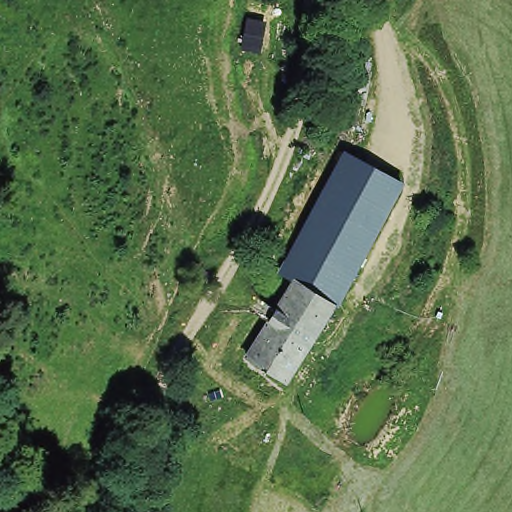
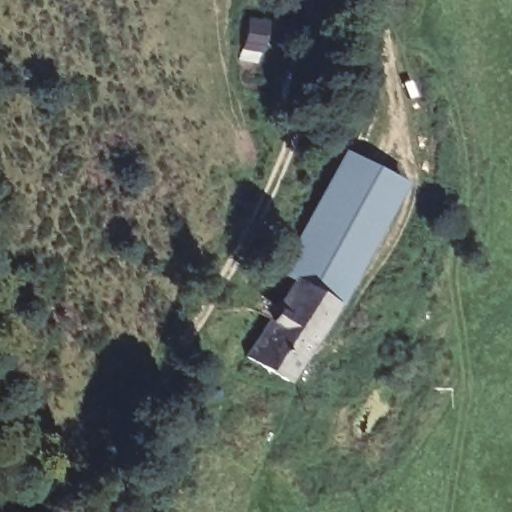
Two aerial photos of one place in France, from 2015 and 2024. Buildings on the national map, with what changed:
unchanged [(266,59),(229,56),(232,30),(267,37),(266,59)]
unchanged [(410,182),(342,302),(279,267),(347,149),(410,182)]
unchanged [(334,305),(307,346),(270,322),(297,281),(334,305)]
unchanged [(293,368),(287,377),(286,379),(252,355),(256,349),(253,346),(260,336),(270,322),(307,346),(293,368)]

